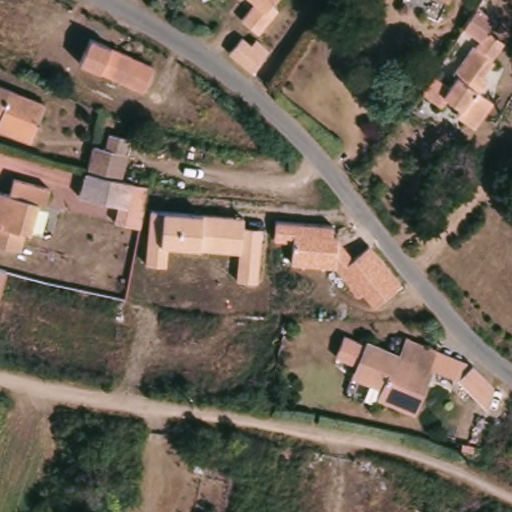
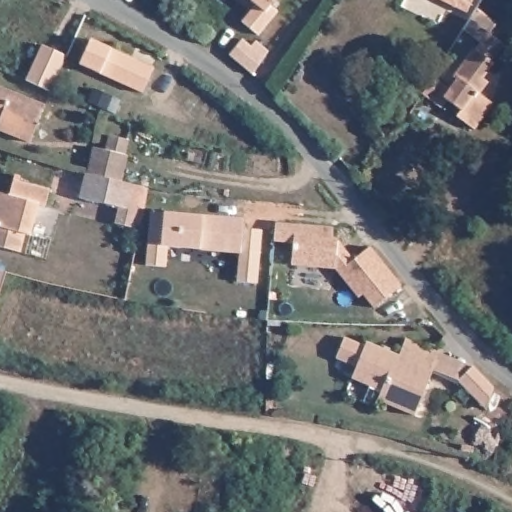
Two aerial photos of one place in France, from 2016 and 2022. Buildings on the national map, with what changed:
unchanged [(278,0),(261,25),(244,14),(253,0),(277,0),(278,0)]
unchanged [(449,85),(456,74),(453,72),(471,42),(472,43),(477,35),(460,25),(471,0),(491,14),(485,24),(501,34),(490,50),(494,52),(481,71),(487,75),(480,86),(495,95),(477,122),(459,111),(462,107),(448,99),(443,105),(423,93),(433,76),(449,85)]
unchanged [(447,1),(446,0),(448,0),(447,1)]
unchanged [(235,47),(246,30),(255,38),(260,32),(272,42),(260,66),(235,47)]
unchanged [(151,66),(140,90),(78,60),(90,36),(151,66)]
new [(38,49),(63,60),(47,95),(22,84),(38,49)]
unchanged [(30,135),(0,123),(0,112),(0,81),(45,100),(30,135)]
unchanged [(87,144),(96,146),(100,131),(120,137),(116,151),(118,152),(111,176),(111,177),(105,175),(80,169),(87,144)]
unchanged [(80,169),(105,175),(111,177),(111,176),(138,181),(141,181),(128,226),(104,219),(108,202),(70,191),(75,168),(80,169)]
unchanged [(44,204),(36,202),(26,234),(22,233),(17,248),(0,243),(0,190),(7,192),(12,177),(49,187),(44,204)]
unchanged [(235,281),(237,254),(200,248),(168,246),(164,266),(145,265),(151,209),(166,210),(204,212),(244,217),(244,225),(262,227),(258,281),(235,281)]
unchanged [(373,308),(362,296),(358,298),(335,268),(291,265),(294,241),(274,240),(276,223),(333,227),(332,235),(338,236),(338,241),(355,258),(371,245),(401,285),(373,308)]
unchanged [(0,291),(0,266),(7,268),(0,291)]
unchanged [(426,365),(430,367),(411,412),(373,397),(377,388),(347,376),(352,364),(332,356),(340,335),(360,343),(362,340),(395,353),(402,336),(433,348),(426,365)]
unchanged [(485,408),(458,379),(430,367),(426,365),(433,348),(471,363),(493,385),(485,408)]

